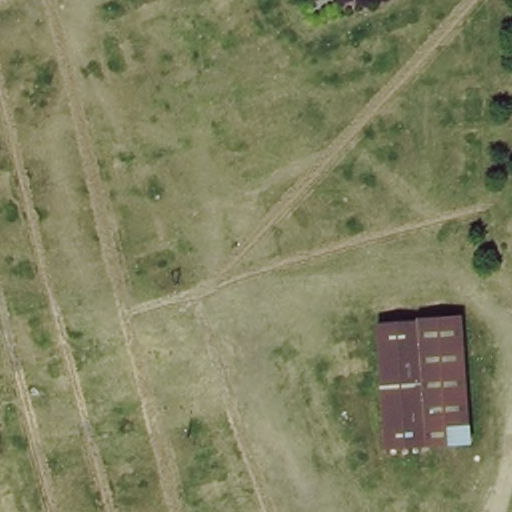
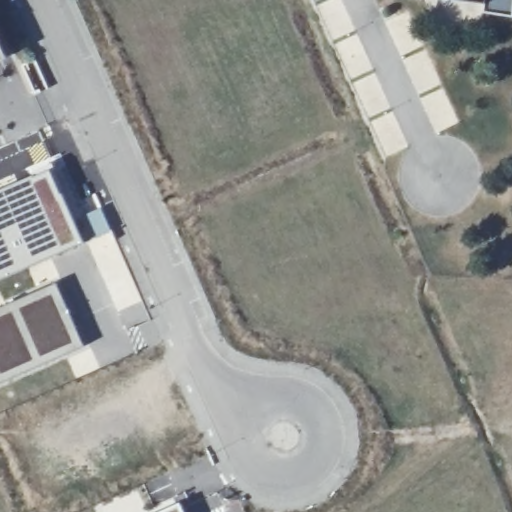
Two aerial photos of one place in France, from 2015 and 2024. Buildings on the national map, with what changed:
new [(487,3),(462,0),(512,0),(512,17),(485,14),(487,3)]
new [(0,58),(0,44),(5,55),(0,58)]
new [(58,181),(85,242),(0,280),(0,184),(53,166),(58,181)]
new [(101,205),(113,230),(95,238),(84,213),(101,205)]
new [(84,345),(0,383),(0,309),(57,285),(84,345)]
demolished [(386,448),(377,323),(451,318),(461,317),(463,345),(469,443),(386,448)]
new [(180,503),(184,512),(161,512),(180,503)]

